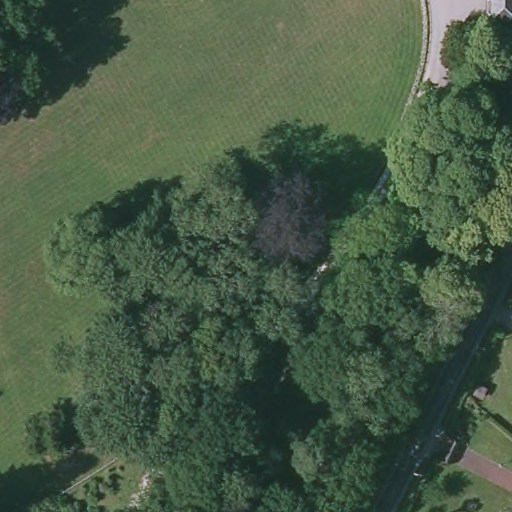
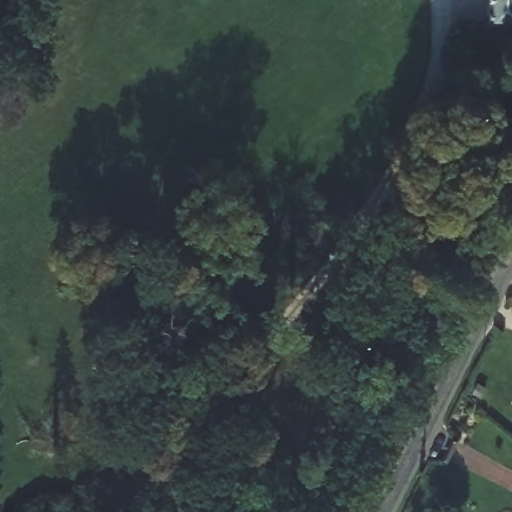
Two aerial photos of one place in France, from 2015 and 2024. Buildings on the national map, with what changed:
unchanged [(479,25),(479,0),(512,0),(512,25),(479,25)]

